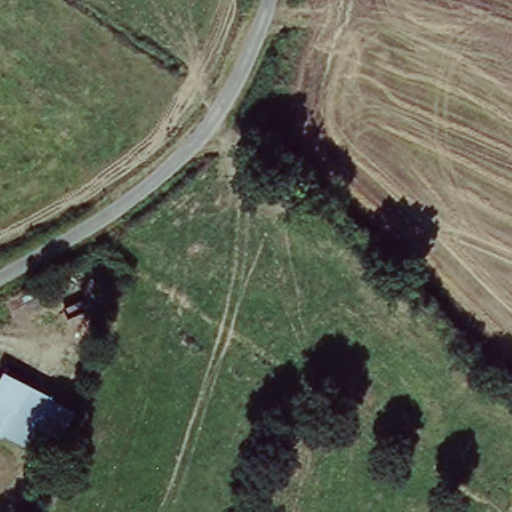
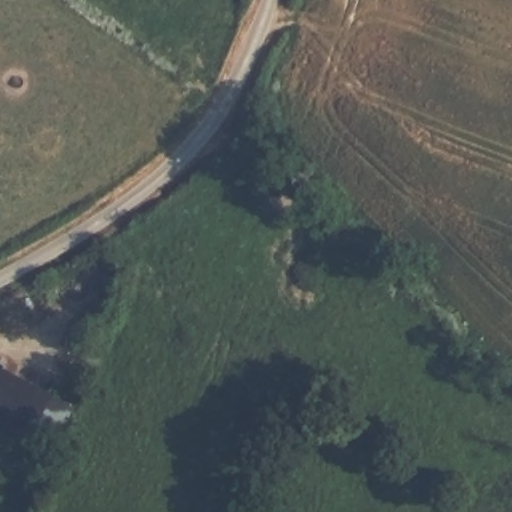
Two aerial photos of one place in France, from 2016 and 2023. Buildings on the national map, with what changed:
unchanged [(60,395),(30,452),(0,437),(0,376),(4,368),(60,395)]

